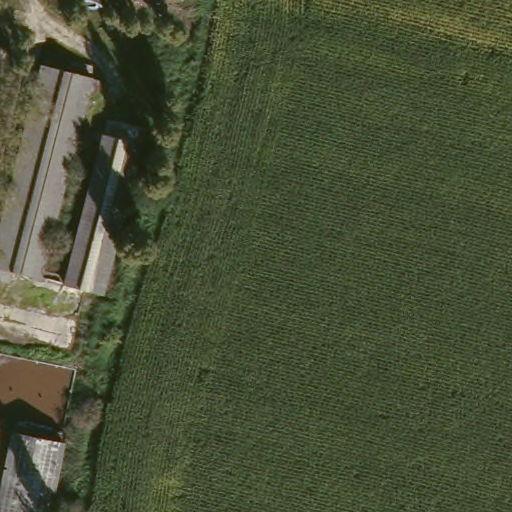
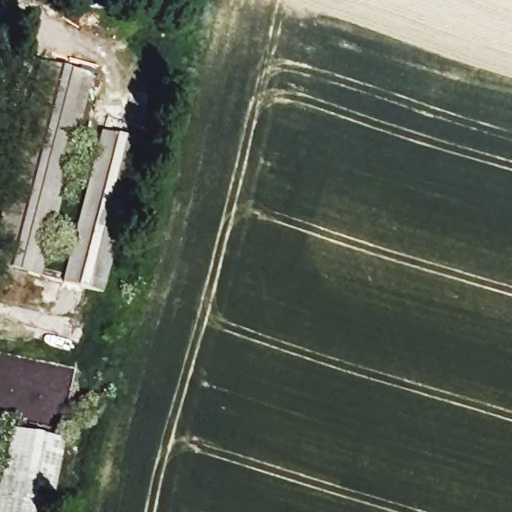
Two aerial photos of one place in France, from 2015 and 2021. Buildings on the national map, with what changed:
unchanged [(44,68),(92,81),(91,85),(100,87),(97,97),(88,95),(38,278),(16,272),(12,283),(0,280),(0,234),(44,68)]
unchanged [(105,134),(142,145),(103,295),(66,285),(105,134)]
unchanged [(19,439),(23,427),(65,438),(61,450),(44,512),(0,512),(0,510),(19,439)]

